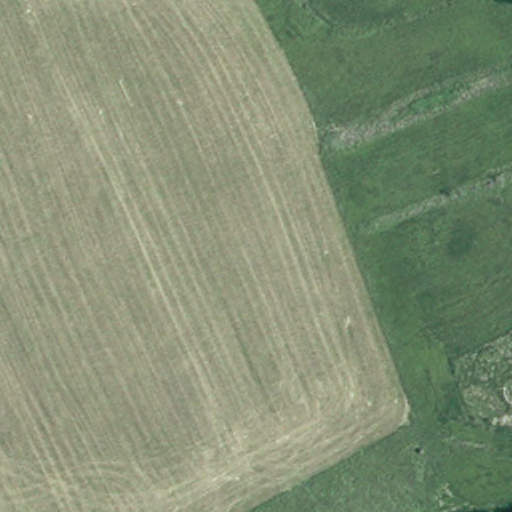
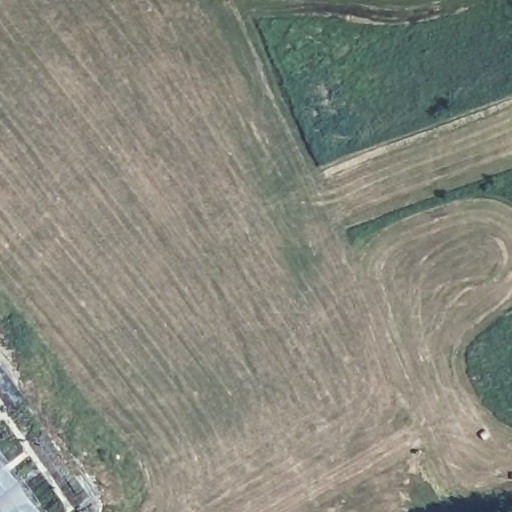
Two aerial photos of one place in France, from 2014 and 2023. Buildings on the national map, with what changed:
new [(0,451),(4,449),(52,512),(0,512),(0,451)]

